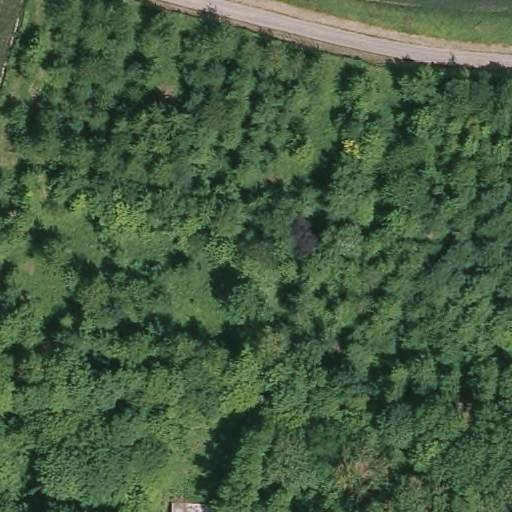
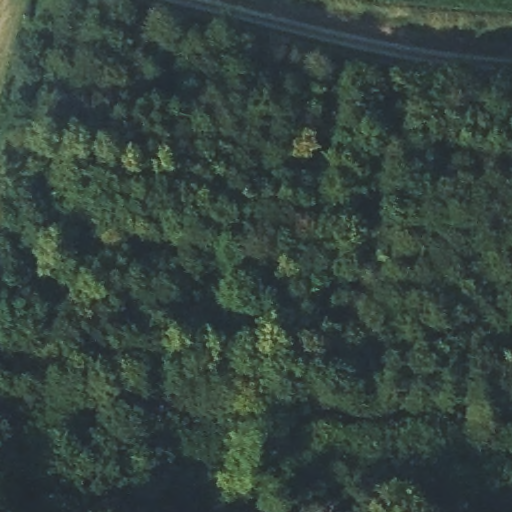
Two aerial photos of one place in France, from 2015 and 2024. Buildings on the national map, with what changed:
unchanged [(217,511),(165,512),(165,487),(217,487),(217,511)]

